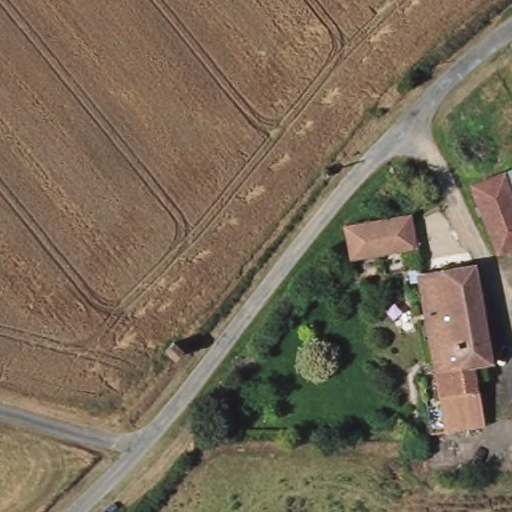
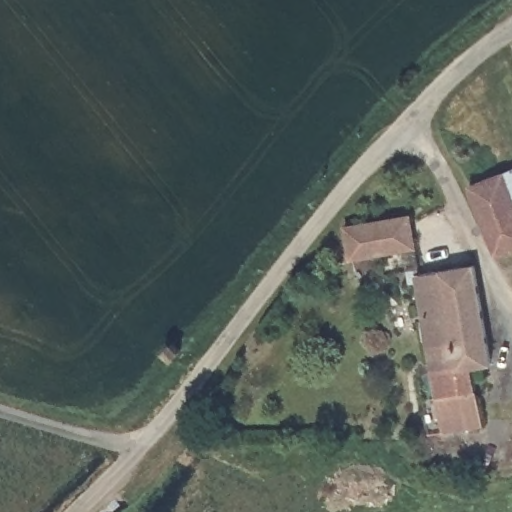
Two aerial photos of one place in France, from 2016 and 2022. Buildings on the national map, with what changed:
unchanged [(497,256),(469,187),(512,171),(512,250),(497,256)]
unchanged [(406,212),(415,268),(472,260),(488,360),(468,362),(478,422),(445,426),(417,281),(400,284),(393,254),(354,263),(348,229),(366,224),(406,212)]

